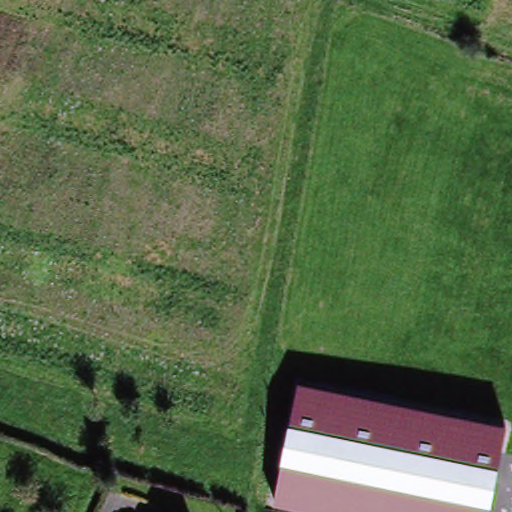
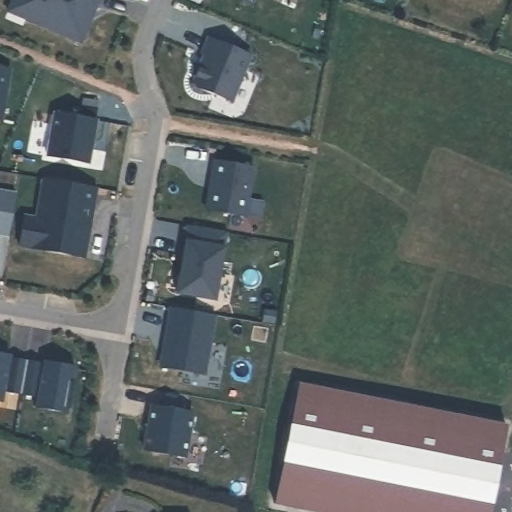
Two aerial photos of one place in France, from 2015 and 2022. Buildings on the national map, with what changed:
new [(71,37),(25,17),(8,10),(12,1),(12,0),(97,0),(92,12),(80,41),(71,37)]
new [(204,55),(201,54),(208,38),(250,56),(231,101),(196,87),(193,80),(204,55)]
new [(9,71),(0,118),(0,69),(9,71)]
new [(53,113),(94,120),(86,164),(45,156),(53,113)]
new [(254,168),(248,217),(206,212),(213,161),(254,168)]
new [(24,216),(36,219),(43,179),(97,189),(84,259),(19,247),(24,216)]
new [(17,192),(9,237),(0,236),(0,190),(17,192)]
new [(228,232),(225,249),(217,300),(174,295),(181,264),(179,264),(186,227),(228,232)]
new [(217,316),(207,375),(159,369),(171,307),(217,316)]
new [(9,355),(8,358),(43,365),(44,362),(75,366),(68,413),(35,408),(38,396),(2,392),(1,405),(0,404),(0,354),(9,355)]
unchanged [(489,512),(304,512),(274,506),(298,383),(506,427),(489,512)]
new [(195,412),(186,458),(142,451),(150,405),(195,412)]

